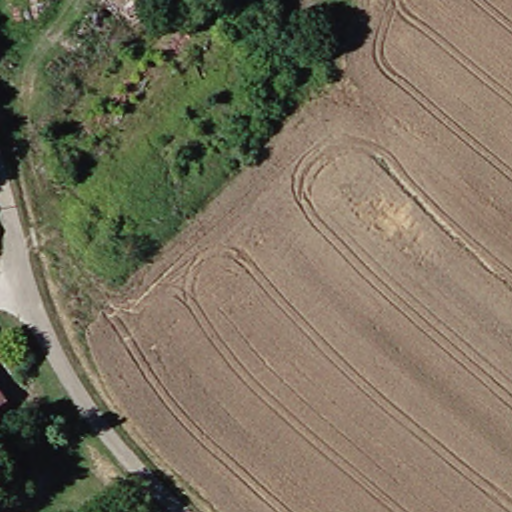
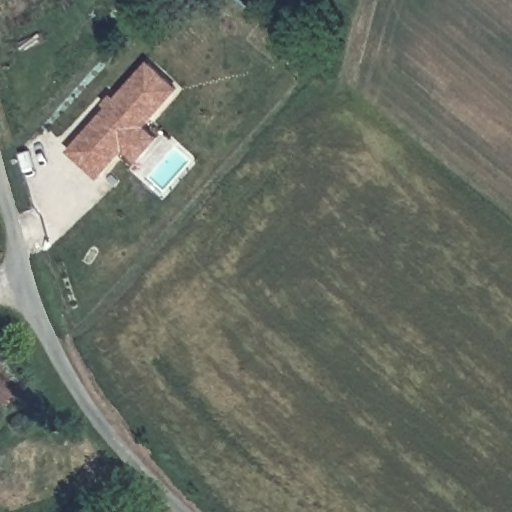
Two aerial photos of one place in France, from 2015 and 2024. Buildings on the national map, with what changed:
new [(110,106),(105,102),(113,93),(117,97),(149,60),(178,89),(148,126),(161,138),(139,163),(125,150),(100,175),(69,151),(110,106)]
unchanged [(0,411),(0,329),(35,389),(0,411)]

